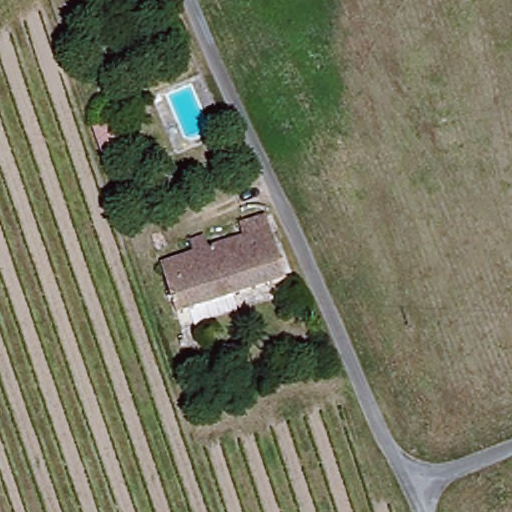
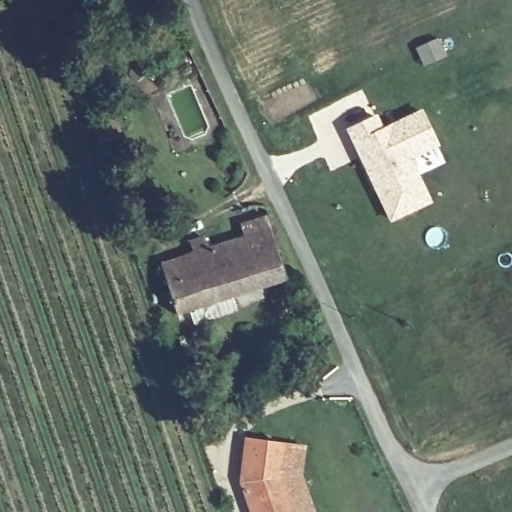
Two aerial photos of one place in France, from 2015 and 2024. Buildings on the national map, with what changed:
new [(415,205),(394,215),(351,124),(378,111),(385,125),(424,107),(440,140),(412,154),(421,172),(433,197),(415,205)]
unchanged [(126,167),(101,176),(89,141),(113,132),(126,167)]
unchanged [(155,265),(238,237),(236,225),(264,215),(280,249),(294,278),(282,283),(172,317),(155,265)]
new [(285,475),(298,512),(250,512),(241,485),(245,437),(288,443),(285,475)]
new [(300,475),(312,512),(298,512),(285,475),(288,443),(302,445),(300,475)]

